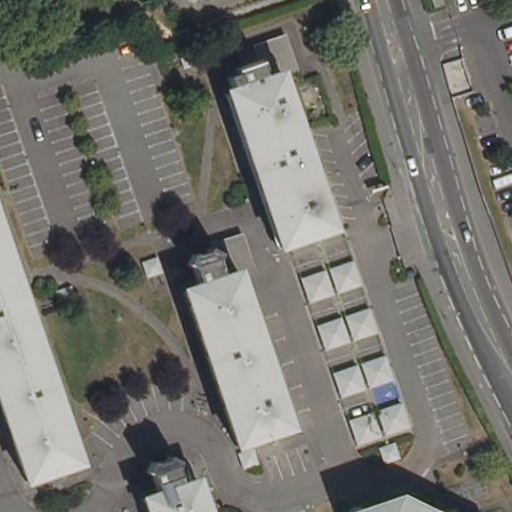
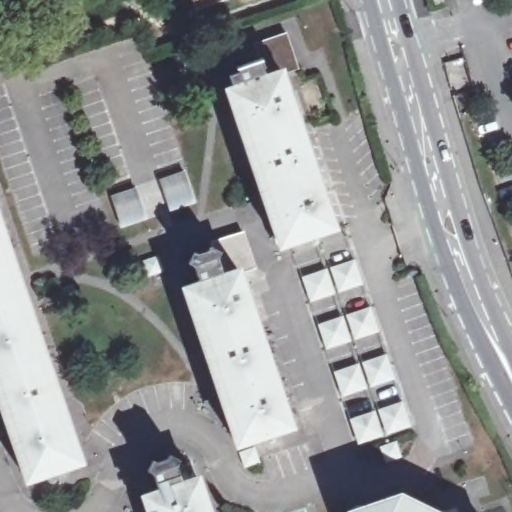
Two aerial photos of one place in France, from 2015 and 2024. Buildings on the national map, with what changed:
unchanged [(439,6),(437,0),(448,0),(449,3),(439,6)]
unchanged [(255,44),(287,32),(300,69),(283,75),(282,75),(268,80),(261,59),(255,44)]
unchanged [(197,46),(202,61),(187,65),(182,51),(197,46)]
unchanged [(268,80),(282,75),(283,75),(335,227),(280,246),(228,92),(243,87),(242,83),(240,77),(237,69),(237,67),(261,59),(268,80)]
unchanged [(28,308),(29,310),(65,415),(65,416),(80,461),(81,462),(29,480),(28,478),(0,395),(0,224),(10,251),(10,253),(28,308)]
unchanged [(212,241),(245,231),(257,268),(240,273),(239,274),(225,278),(218,258),(212,241)]
unchanged [(160,255),(165,269),(149,274),(145,260),(160,255)]
unchanged [(225,278),(239,274),(240,273),(275,375),(292,426),(237,445),(185,290),(201,285),(200,281),(197,276),(195,267),(194,266),(218,258),(225,278)]
unchanged [(351,262),(359,284),(335,292),(328,271),(351,262)]
unchanged [(322,272),(330,294),(307,302),(300,280),(322,272)]
unchanged [(73,285),(78,297),(62,303),(58,290),(73,285)]
unchanged [(373,305),(380,326),(355,335),(349,313),(373,305)]
unchanged [(343,315),(352,337),(327,345),(321,323),(343,315)]
unchanged [(389,355),(397,379),(373,388),(365,364),(389,355)]
unchanged [(360,367),(367,390),(345,397),(337,374),(360,367)]
unchanged [(400,403),(409,428),(384,437),(376,411),(400,403)]
unchanged [(370,413),(379,437),(355,446),(347,421),(370,413)]
unchanged [(402,440),(407,453),(390,459),(385,446),(402,440)]
unchanged [(258,451),(263,465),(250,470),(245,455),(258,451)]
unchanged [(146,499),(146,497),(160,493),(159,489),(157,483),(154,475),(153,473),(177,465),(192,460),(200,480),(210,512),(150,512),(146,499)]
unchanged [(378,509),(408,498),(434,512),(376,512),(378,509)]

